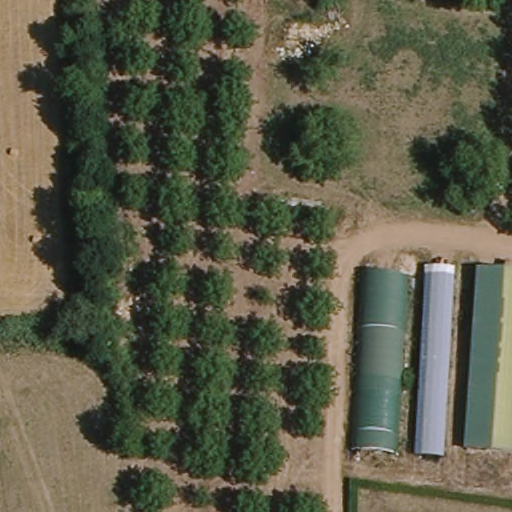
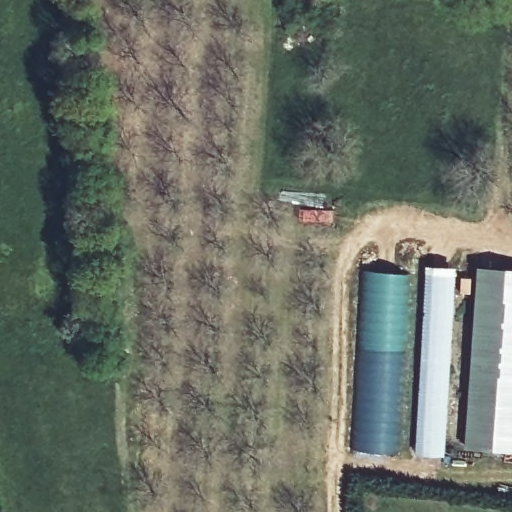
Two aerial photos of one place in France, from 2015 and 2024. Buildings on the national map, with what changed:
unchanged [(429,265),(459,265),(446,454),(416,453),(429,265)]
unchanged [(512,266),(512,451),(463,451),(479,266),(512,266)]
unchanged [(359,271),(417,270),(409,453),(351,453),(359,271)]

